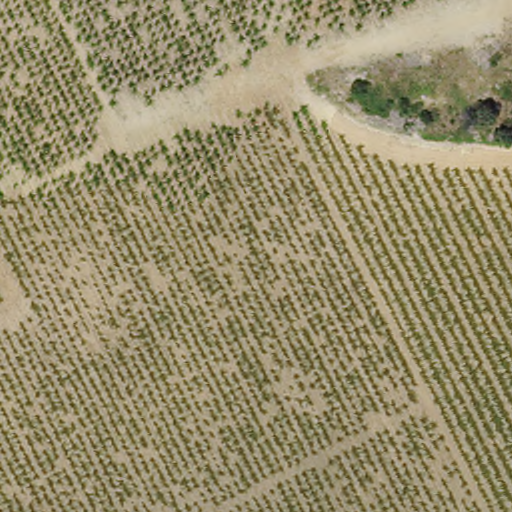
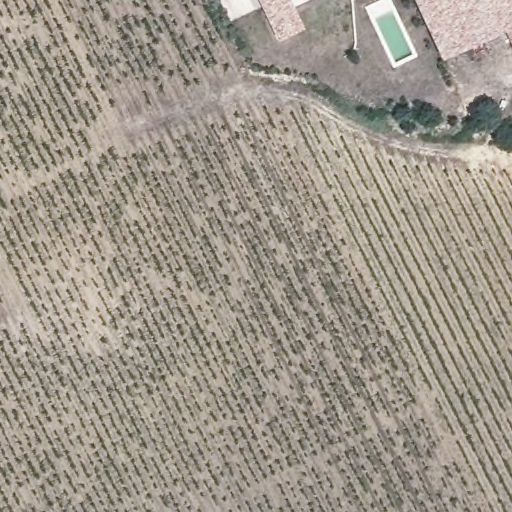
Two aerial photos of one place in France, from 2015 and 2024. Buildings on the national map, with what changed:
new [(264,10),(259,0),(285,0),(298,27),(277,37),(264,10)]
new [(442,59),(415,0),(512,0),(512,43),(506,30),(442,59)]

